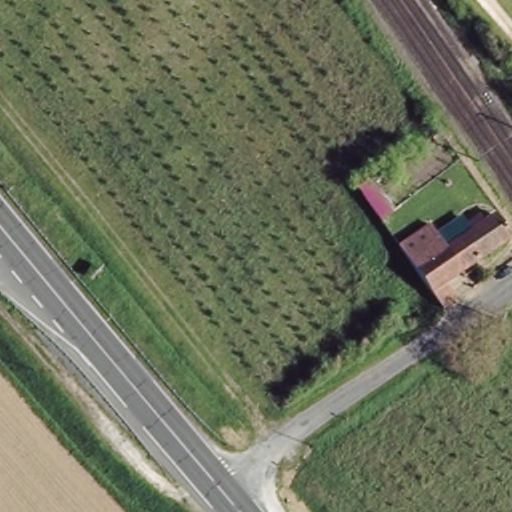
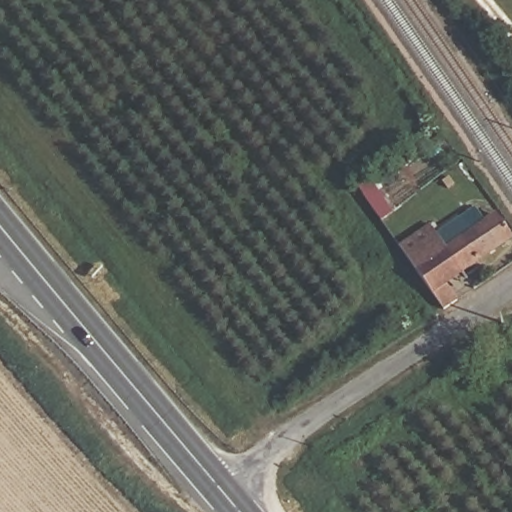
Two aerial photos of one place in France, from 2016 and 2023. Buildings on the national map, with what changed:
unchanged [(439,242),(444,246),(496,210),(512,232),(512,240),(449,286),(459,301),(443,312),(407,262),(439,242)]

